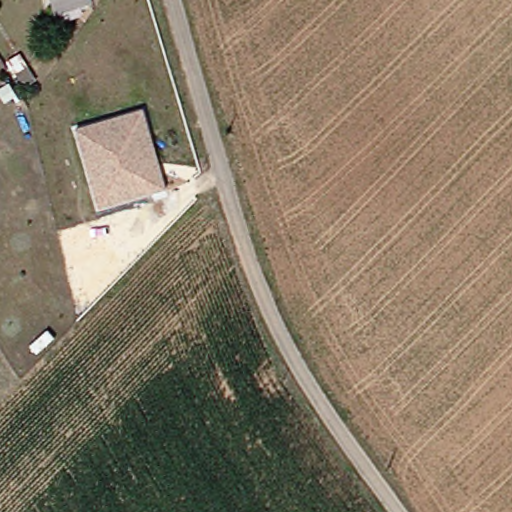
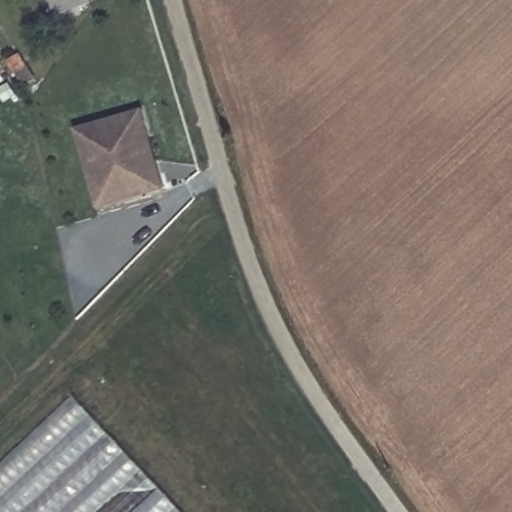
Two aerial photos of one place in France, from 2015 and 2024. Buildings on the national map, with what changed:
unchanged [(90,6),(55,17),(50,0),(89,0),(90,6)]
unchanged [(18,53),(25,66),(13,73),(5,60),(18,53)]
unchanged [(9,83),(16,95),(2,103),(0,100),(0,88),(9,83)]
unchanged [(141,109),(149,137),(165,188),(150,193),(107,205),(98,208),(75,129),(84,126),(141,109)]
new [(184,512),(0,512),(0,467),(75,396),(184,512)]

